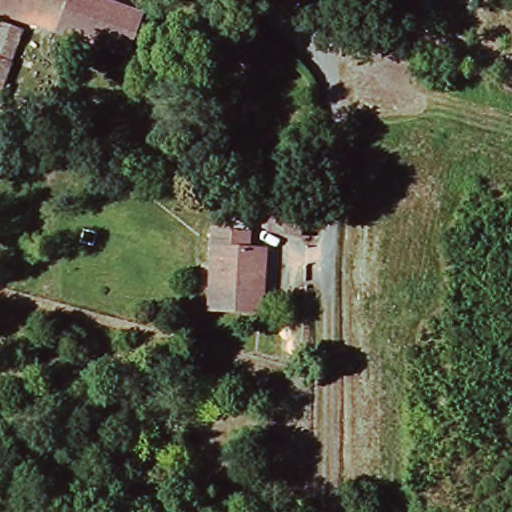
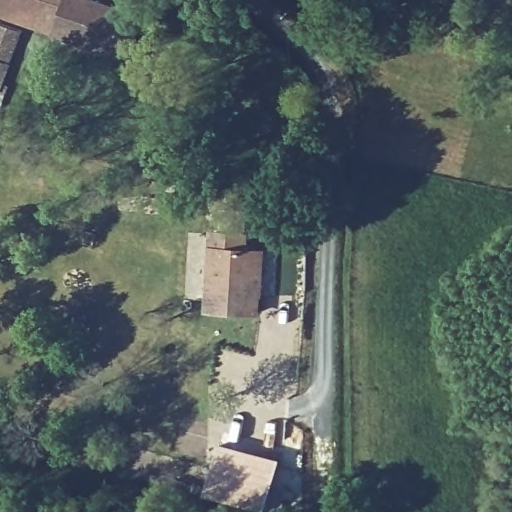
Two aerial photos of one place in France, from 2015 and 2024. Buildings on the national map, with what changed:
unchanged [(127,54),(33,25),(0,15),(0,0),(104,0),(141,11),(127,54)]
unchanged [(12,73),(0,70),(0,25),(25,32),(12,73)]
unchanged [(262,316),(212,312),(219,230),(255,232),(253,251),(260,252),(255,297),(264,297),(262,316)]
new [(216,442),(282,458),(267,510),(205,493),(216,442)]

